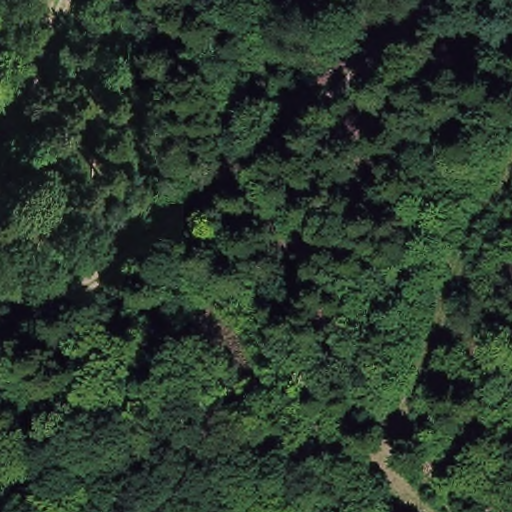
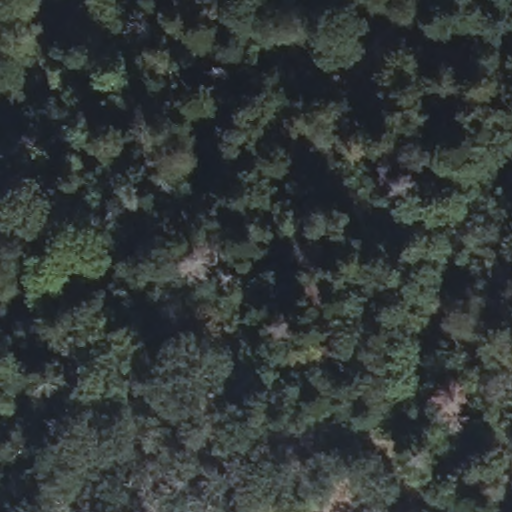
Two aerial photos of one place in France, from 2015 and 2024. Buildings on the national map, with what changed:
unchanged [(0,512),(0,509),(4,512),(0,512)]

